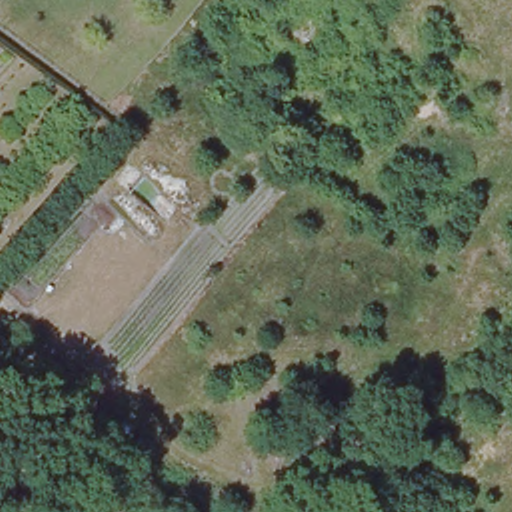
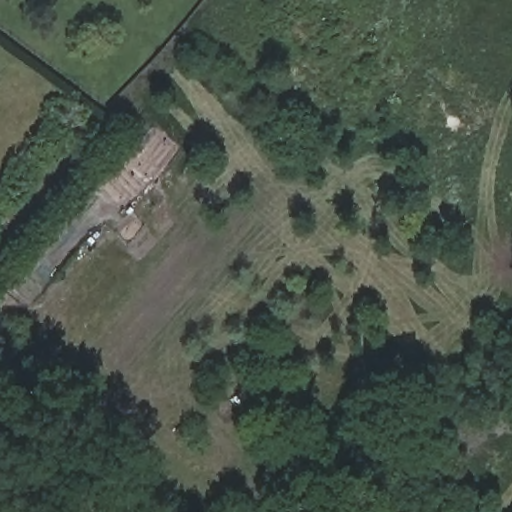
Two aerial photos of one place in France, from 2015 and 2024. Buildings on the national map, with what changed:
[]

